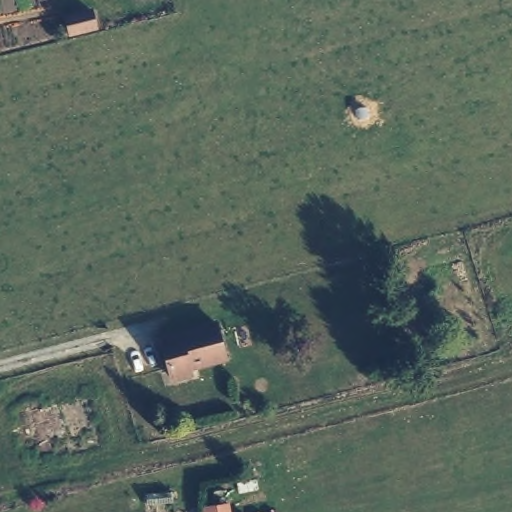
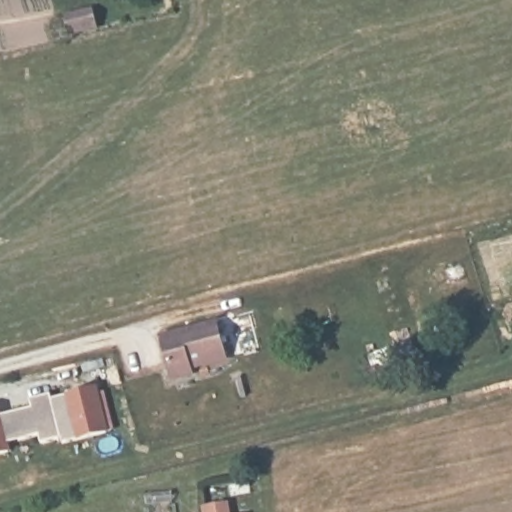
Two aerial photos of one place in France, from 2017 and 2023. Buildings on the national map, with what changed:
unchanged [(85,11),(90,27),(65,32),(61,15),(85,11)]
unchanged [(214,319),(223,358),(172,371),(160,331),(214,319)]
new [(109,433),(63,444),(62,439),(42,444),(40,435),(8,443),(10,452),(0,455),(0,412),(1,417),(32,408),(30,400),(50,395),(52,401),(66,397),(97,389),(109,433)]
demolished [(98,439),(35,458),(19,408),(90,391),(98,439)]
unchanged [(230,502),(232,512),(206,512),(205,505),(230,502)]

